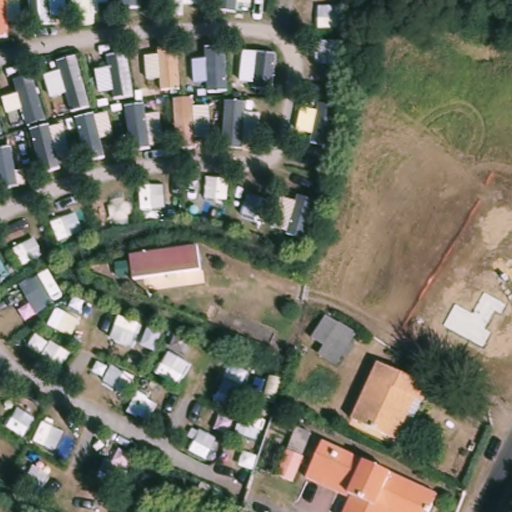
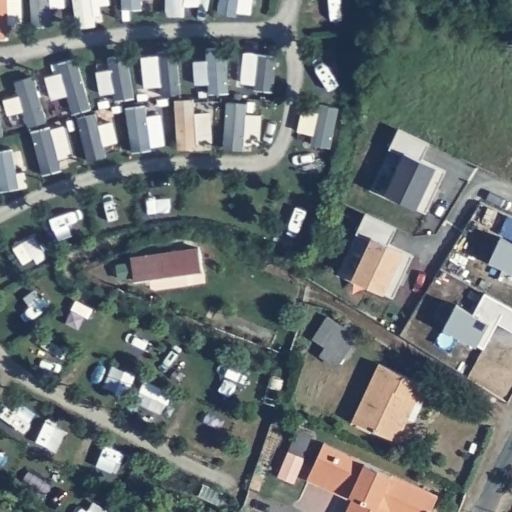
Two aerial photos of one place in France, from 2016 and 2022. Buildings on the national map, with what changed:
new [(396,155),(382,149),(391,127),(422,142),(415,159),(439,170),(420,212),(379,194),(396,155)]
new [(365,240),(351,234),(360,214),(391,228),(384,244),(408,255),(390,297),(348,279),(365,240)]
new [(511,246),(512,244),(512,274),(483,259),(494,237),(511,246)]
unchanged [(200,273),(131,283),(128,257),(194,247),(200,273)]
new [(465,313),(475,292),(503,305),(512,310),(512,332),(494,323),(481,350),(436,327),(447,305),(465,313)]
unchanged [(335,373),(315,363),(320,355),(307,342),(320,317),(357,338),(335,373)]
unchanged [(410,428),(403,447),(352,423),(377,367),(433,392),(425,414),(417,431),(410,428)]
unchanged [(280,458),(263,452),(276,413),(294,418),(280,458)]
unchanged [(309,483),(325,448),(438,500),(433,512),(351,512),(355,504),(309,483)]

